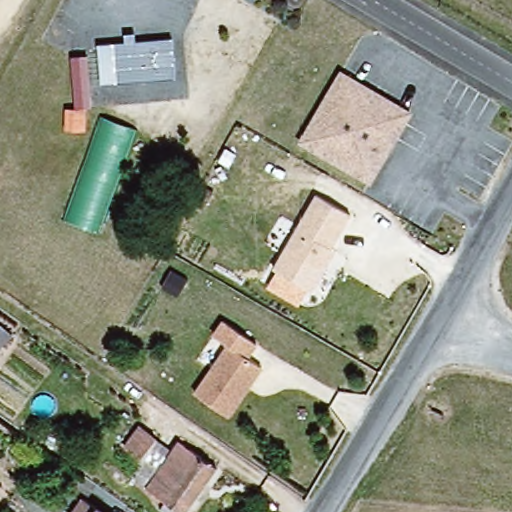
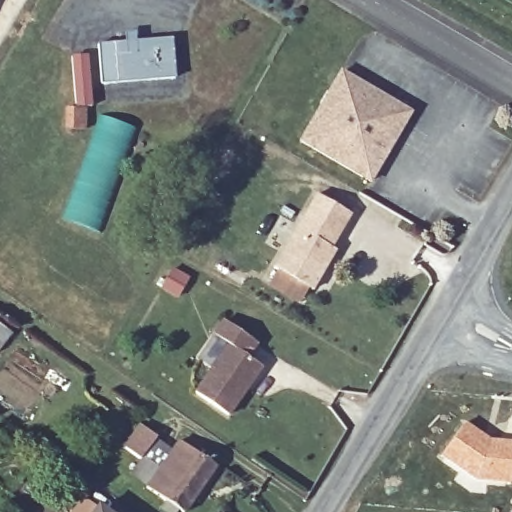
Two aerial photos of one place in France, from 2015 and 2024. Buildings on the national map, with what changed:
unchanged [(99,46),(125,44),(125,36),(134,35),(135,43),(173,41),(177,80),(102,87),(99,46)]
unchanged [(73,59),(90,57),(94,110),(77,111),(73,59)]
unchanged [(300,142),(342,69),(414,110),(370,183),(300,142)]
unchanged [(101,117),(134,128),(98,231),(64,219),(101,117)]
unchanged [(316,197),(352,217),(333,251),(337,252),(313,292),(273,269),(316,197)]
unchanged [(213,333),(223,317),(259,342),(250,357),(263,367),(229,417),(191,391),(224,343),(213,333)]
new [(465,420),(489,437),(512,439),(512,484),(473,481),(439,456),(465,420)]
unchanged [(158,443),(145,461),(128,450),(140,430),(158,443)]
unchanged [(216,469),(187,512),(183,512),(150,488),(181,444),(216,469)]
unchanged [(100,511),(99,512),(78,512),(87,501),(91,503),(100,511)]
unchanged [(100,511),(102,512),(99,512),(100,511)]

